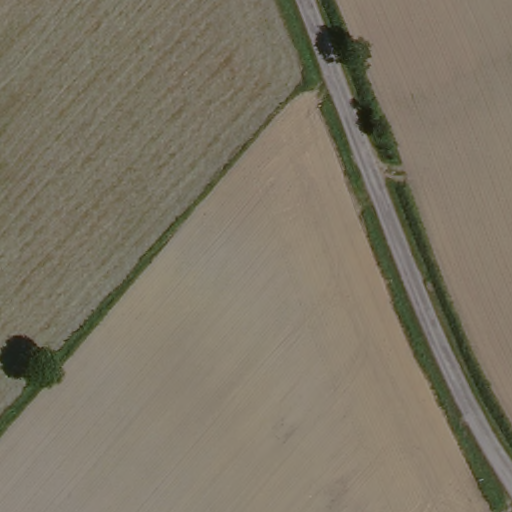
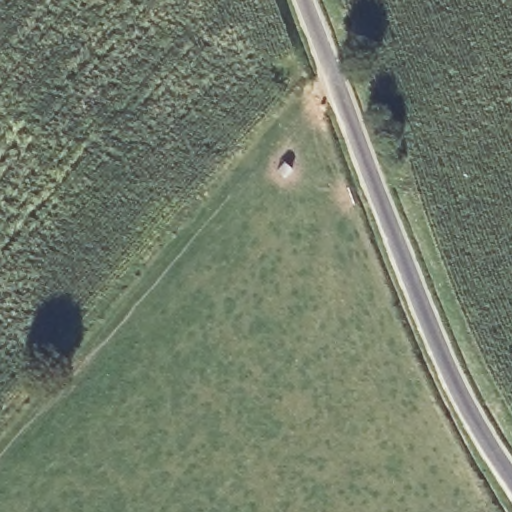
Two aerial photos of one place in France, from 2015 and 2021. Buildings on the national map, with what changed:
[]

